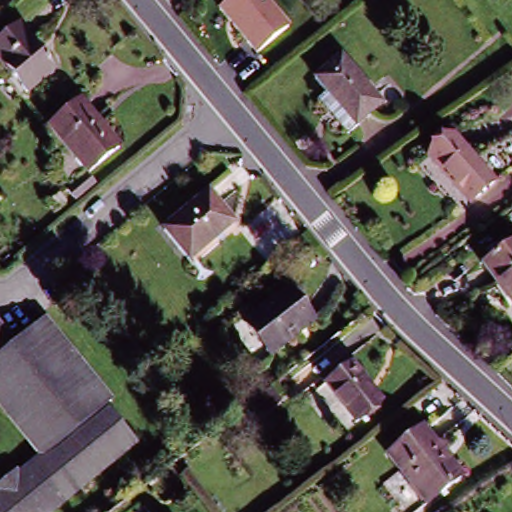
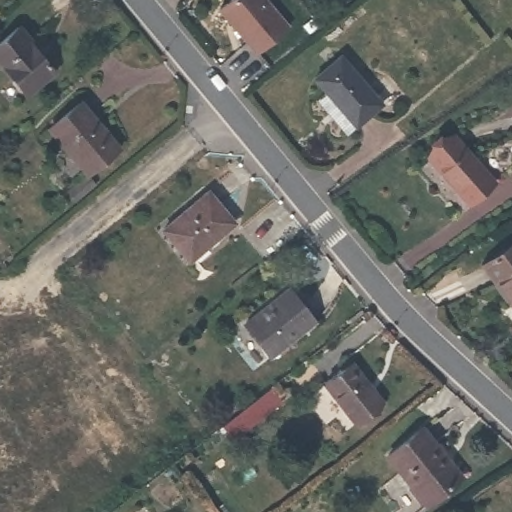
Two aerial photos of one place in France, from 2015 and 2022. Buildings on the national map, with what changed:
new [(257,57),(216,9),(227,0),(269,0),(292,27),(257,57)]
unchanged [(0,69),(0,52),(22,34),(56,74),(23,99),(0,69)]
unchanged [(321,93),(332,87),(322,74),(349,52),(388,102),(362,123),(351,132),(321,93)]
unchanged [(82,177),(46,133),(79,107),(114,151),(82,177)]
unchanged [(467,212),(430,164),(456,146),(491,194),(467,212)]
unchanged [(184,255),(160,225),(204,189),(227,219),(184,255)]
unchanged [(478,265),(510,242),(512,245),(512,308),(478,265)]
unchanged [(286,285),(314,319),(269,357),(242,322),(286,285)]
demolished [(0,499),(2,498),(0,496),(0,490),(19,473),(25,479),(47,459),(0,405),(0,321),(16,341),(45,316),(114,401),(109,405),(141,440),(56,512),(0,512),(0,499)]
unchanged [(348,373),(354,368),(384,404),(359,426),(330,389),(348,373)]
unchanged [(462,473),(427,504),(386,455),(422,425),(436,442),(462,473)]

